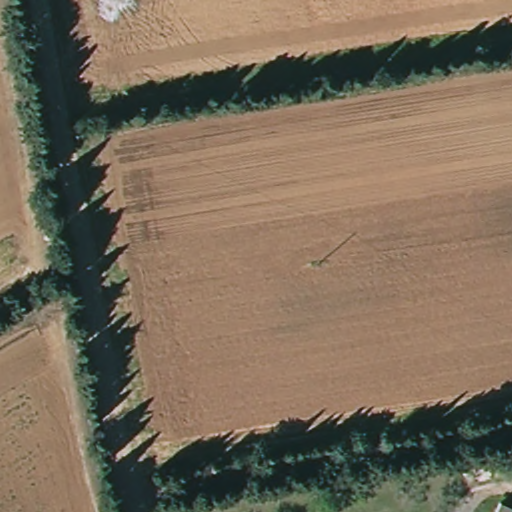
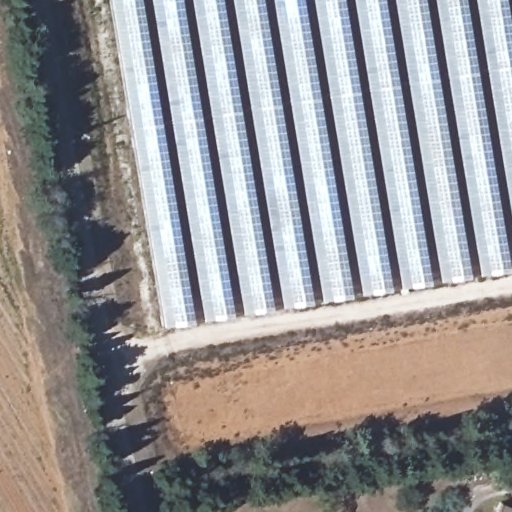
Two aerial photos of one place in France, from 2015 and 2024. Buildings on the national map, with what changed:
new [(108,0),(512,0),(512,268),(161,326),(108,0)]
unchanged [(512,512),(491,512),(495,503),(512,512)]

